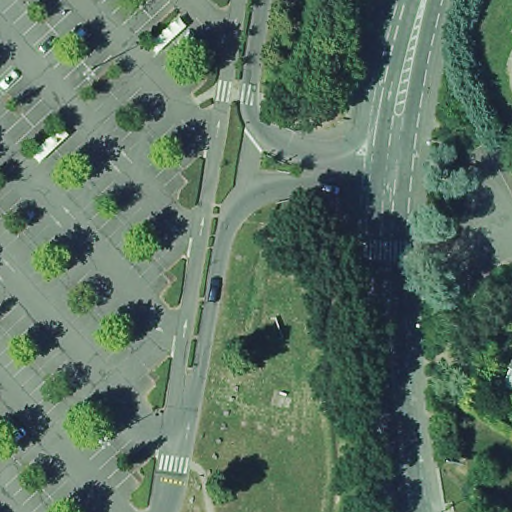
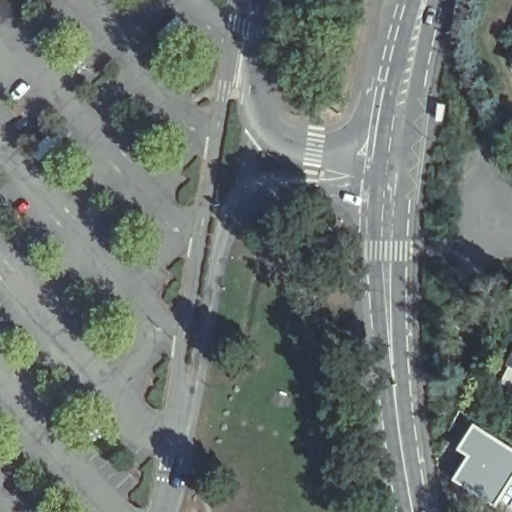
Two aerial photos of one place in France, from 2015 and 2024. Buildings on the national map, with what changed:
new [(467,457),(457,451),(475,423),(512,448),(512,483),(495,509),(452,481),(467,457)]

